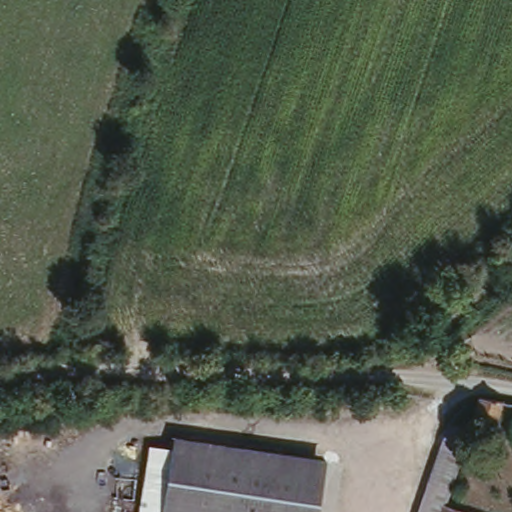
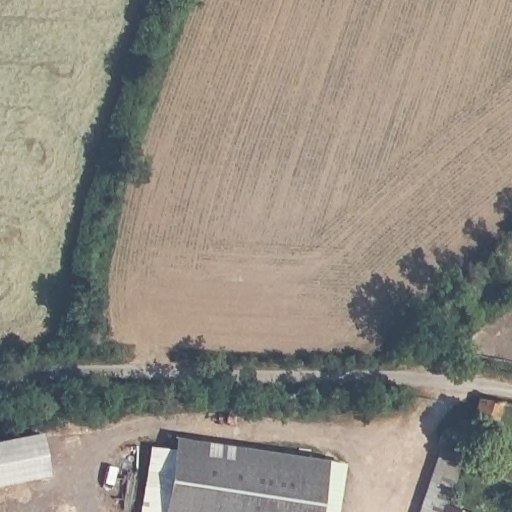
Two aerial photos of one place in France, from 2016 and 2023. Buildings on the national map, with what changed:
unchanged [(478,394),(488,395),(505,399),(491,434),(467,424),(478,394)]
unchanged [(321,512),(141,512),(150,449),(173,452),(176,432),(330,457),(321,512)]
new [(42,495),(0,498),(0,440),(40,438),(42,495)]
unchanged [(413,512),(437,444),(465,454),(456,505),(474,512),(413,512)]

